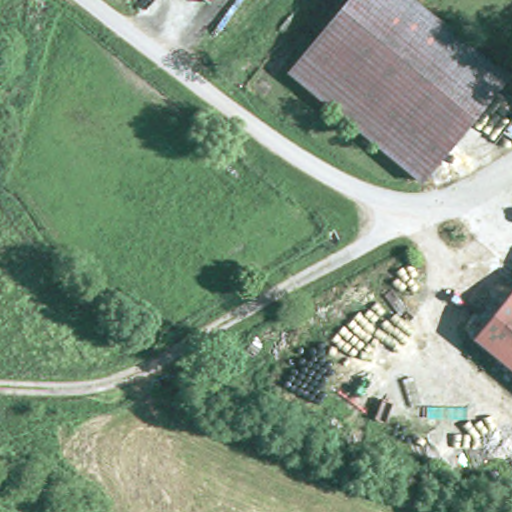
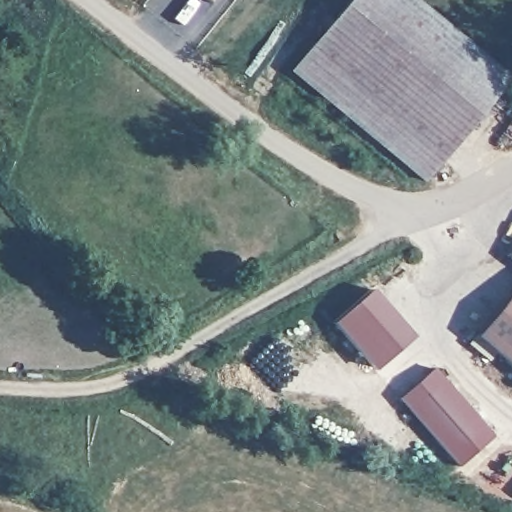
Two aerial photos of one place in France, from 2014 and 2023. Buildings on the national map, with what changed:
unchanged [(421,180),(290,71),(348,0),(387,0),(497,89),(421,180)]
unchanged [(497,89),(387,0),(419,0),(511,72),(497,89)]
new [(512,253),(512,263),(507,259),(512,253)]
new [(412,335),(374,369),(332,321),(371,288),(412,335)]
unchanged [(512,295),(512,365),(475,334),(512,295)]
new [(495,436),(460,467),(399,396),(433,367),(495,436)]

